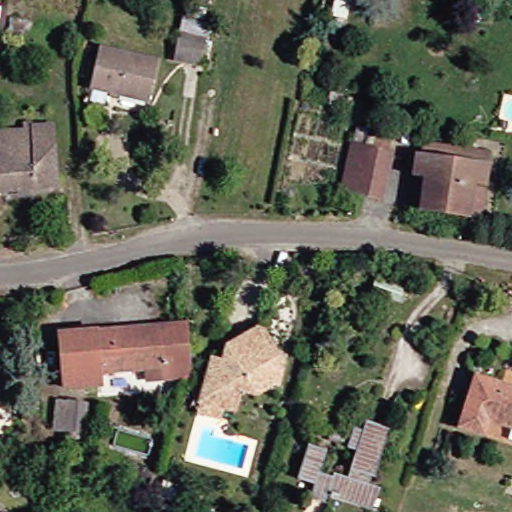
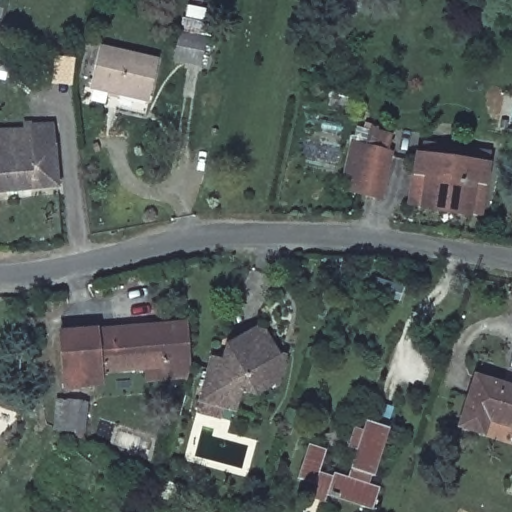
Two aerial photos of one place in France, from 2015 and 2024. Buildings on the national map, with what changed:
unchanged [(210,48),(208,59),(207,63),(180,58),(182,49),(184,38),(186,27),(189,15),(199,17),(205,18),(216,21),(212,37),(211,42),(210,48)]
unchanged [(149,101),(148,102),(144,101),(139,100),(128,97),(100,91),(94,90),(90,89),(94,68),(99,48),(122,53),(128,54),(156,60),(157,61),(151,90),(150,95),(149,101)]
unchanged [(29,124),(38,125),(36,111),(51,112),(58,113),(59,113),(61,136),(63,153),(63,159),(64,164),(64,175),(66,188),(0,194),(0,132),(30,132),(29,124)]
unchanged [(343,190),(343,188),(347,171),(350,154),(352,145),(355,145),(357,135),(358,131),(393,139),(390,154),(393,155),(395,155),(384,200),(373,198),(367,196),(345,191),(343,190)]
unchanged [(420,177),(423,156),(494,165),(486,217),(425,209),(415,208),(420,177)]
unchanged [(275,382),(260,390),(246,386),(240,402),(239,406),(207,396),(208,393),(209,389),(210,385),(211,377),(212,373),(215,361),(216,358),(217,356),(227,358),(232,343),(267,323),(285,351),(287,353),(289,354),(283,382),(277,379),(278,381),(275,382)]
unchanged [(188,378),(168,379),(146,381),(146,369),(103,372),(101,372),(101,376),(102,382),(103,386),(84,388),(79,388),(66,389),(64,354),(64,348),(63,335),(71,334),(77,334),(83,333),(122,330),(188,324),(189,334),(190,352),(191,364),(191,365),(191,366),(188,378)]
unchanged [(467,426),(468,423),(476,397),(478,391),(482,380),(497,385),(503,387),(512,390),(512,425),(493,419),(490,431),(489,433),(467,426)]
unchanged [(70,403),(81,404),(83,404),(80,429),(80,432),(60,430),(61,418),(61,412),(63,403),(64,403),(70,403)]
unchanged [(377,483),(384,485),(377,506),(375,505),(366,502),(363,507),(335,497),(336,493),(332,491),(328,500),(315,495),(320,480),(313,478),(308,476),(303,475),(310,454),(314,441),(318,442),(323,444),(331,447),(328,454),(324,465),(323,468),(326,469),(337,473),(339,469),(350,473),(352,473),(354,470),(357,459),(361,447),(353,444),(358,424),(368,427),(371,417),(378,420),(394,425),(391,436),(389,442),(385,453),(379,472),(377,471),(373,481),(377,483)]
unchanged [(148,485),(130,471),(136,463),(154,476),(148,485)]
unchanged [(161,493),(166,484),(178,490),(172,499),(161,493)]

